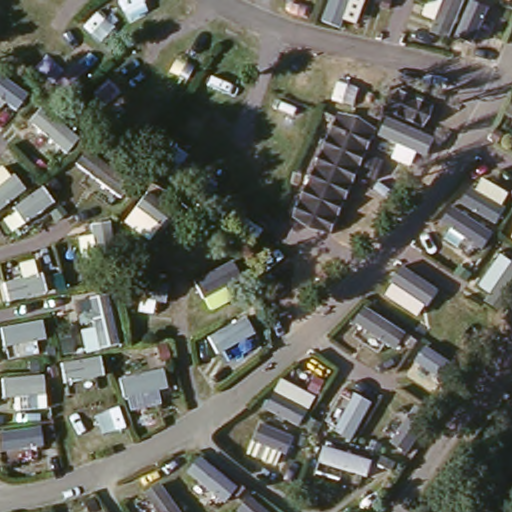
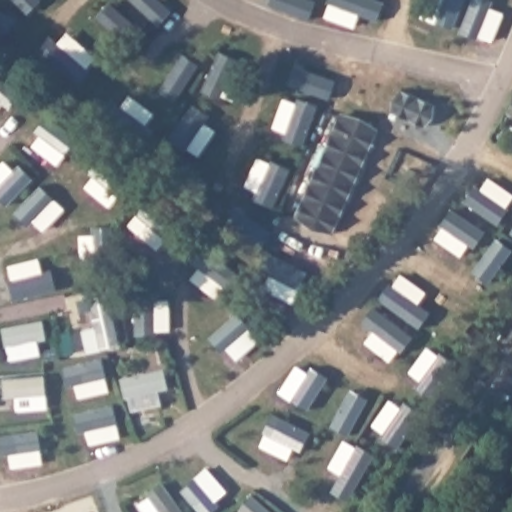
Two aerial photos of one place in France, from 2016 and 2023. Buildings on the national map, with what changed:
unchanged [(407,111),(443,126),(434,146),(399,132),(407,111)]
unchanged [(375,127),(331,232),(293,217),(335,112),(375,127)]

